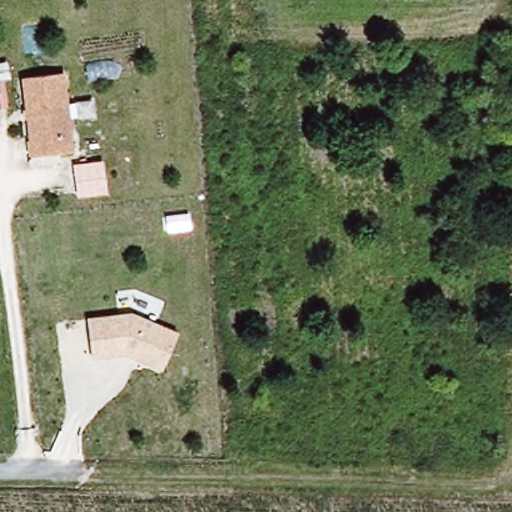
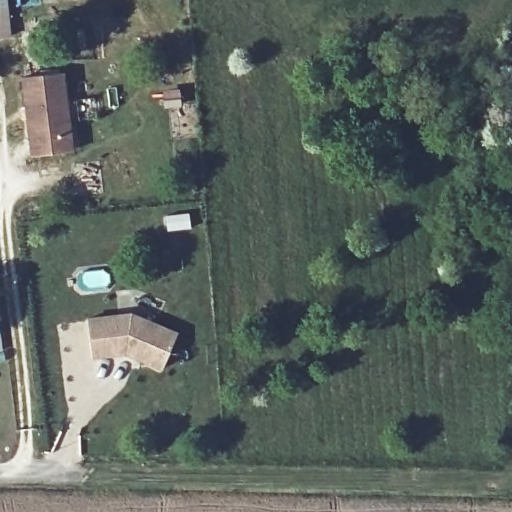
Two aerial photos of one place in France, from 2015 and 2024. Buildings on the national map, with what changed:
new [(8,0),(12,36),(0,37),(0,0),(8,0)]
unchanged [(67,75),(76,153),(29,158),(21,79),(67,75)]
unchanged [(130,311),(180,331),(162,371),(125,356),(90,362),(85,318),(130,311)]

